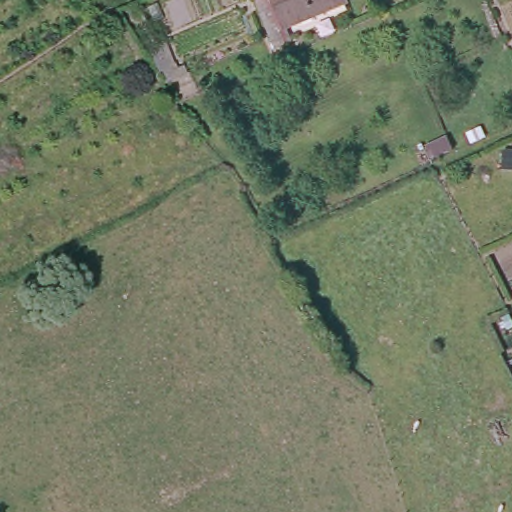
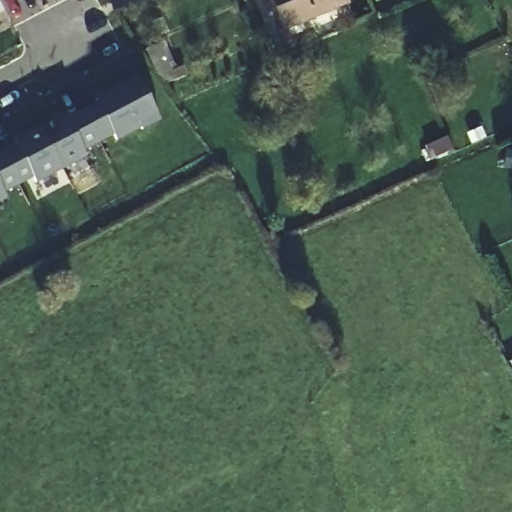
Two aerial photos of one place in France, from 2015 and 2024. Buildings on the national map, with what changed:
unchanged [(288,34),(294,46),(277,54),(256,6),(269,0),(344,0),(348,9),(288,34)]
unchanged [(162,44),(178,81),(186,77),(190,85),(175,91),(172,83),(164,85),(149,49),(162,44)]
new [(17,146),(15,143),(65,116),(68,121),(98,104),(96,101),(137,79),(160,120),(141,130),(140,128),(116,140),(112,134),(84,149),(87,155),(36,182),(33,176),(2,192),(6,198),(0,200),(0,155),(17,146)]

